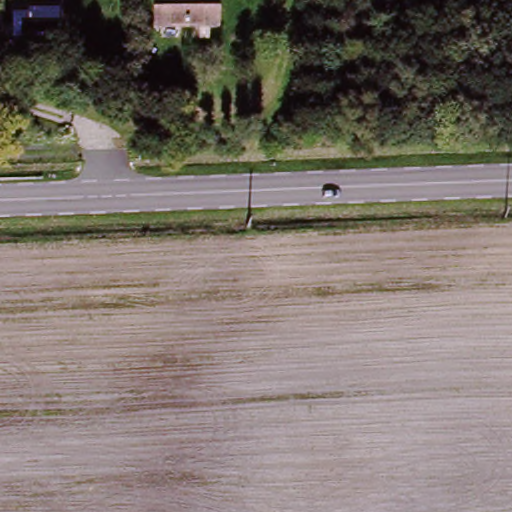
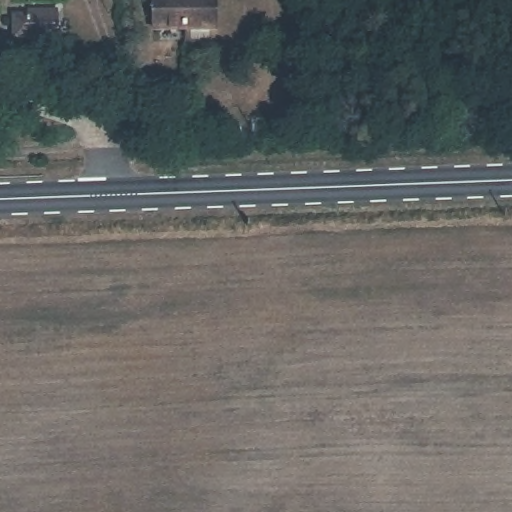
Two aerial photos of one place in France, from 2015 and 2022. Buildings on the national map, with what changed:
unchanged [(146,36),(145,0),(158,0),(158,5),(168,7),(169,0),(183,0),(183,6),(195,5),(195,0),(207,0),(209,34),(146,36)]
unchanged [(16,48),(17,27),(29,27),(32,21),(57,22),(57,48),(16,48)]

